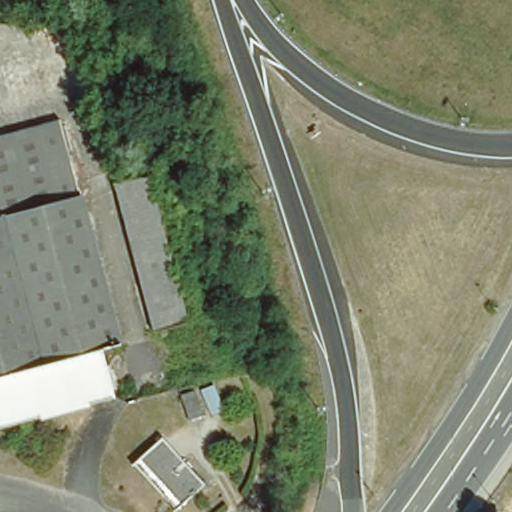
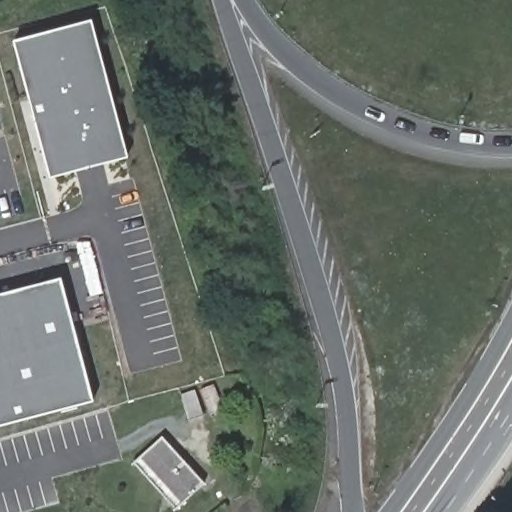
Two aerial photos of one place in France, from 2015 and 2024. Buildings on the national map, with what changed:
new [(128,159),(49,180),(13,41),(91,21),(128,159)]
demolished [(54,114),(75,194),(0,213),(0,128),(54,114)]
demolished [(111,186),(145,178),(183,324),(148,333),(111,186)]
demolished [(75,194),(114,339),(96,343),(109,397),(87,402),(88,404),(38,418),(37,415),(5,423),(0,406),(0,213),(75,194)]
new [(93,403),(0,427),(0,294),(60,279),(93,403)]
unchanged [(209,387),(211,386),(220,410),(213,412),(208,414),(199,391),(209,387)]
unchanged [(203,416),(191,421),(182,398),(194,393),(203,416)]
demolished [(5,423),(0,424),(0,406),(5,423)]
unchanged [(191,468),(204,482),(176,510),(132,465),(162,437),(191,468)]

